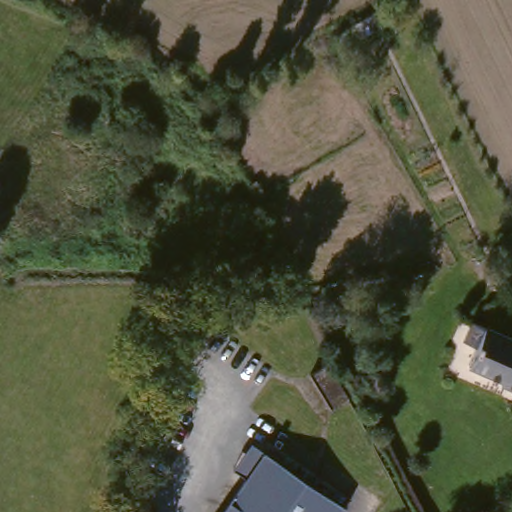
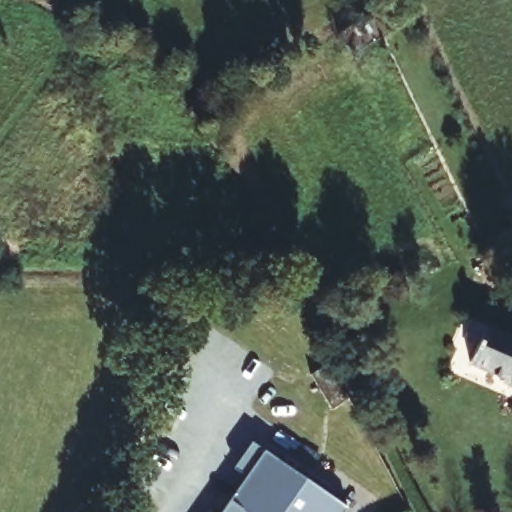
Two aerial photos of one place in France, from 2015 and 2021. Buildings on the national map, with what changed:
unchanged [(356,23),(379,10),(385,22),(363,35),(356,23)]
unchanged [(498,378),(464,363),(472,345),(459,339),(468,320),(512,340),(512,388),(497,381),(498,378)]
unchanged [(349,399),(332,409),(311,374),(329,364),(349,399)]
unchanged [(229,499),(246,475),(233,467),(250,442),(347,506),(343,512),(221,512),(229,499)]

